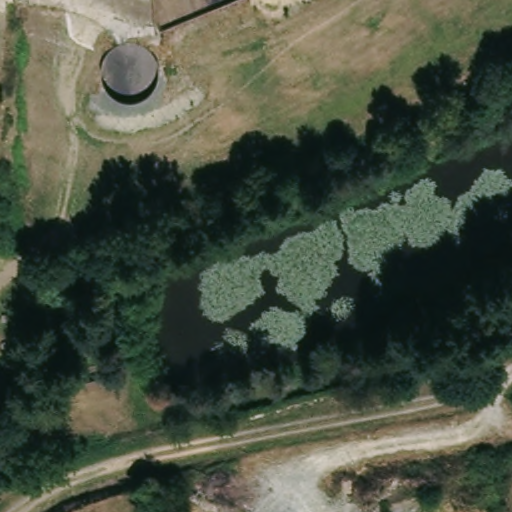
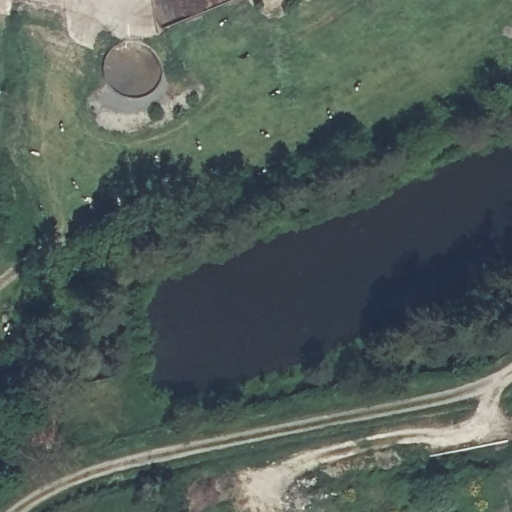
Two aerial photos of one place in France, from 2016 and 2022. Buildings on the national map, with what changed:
unchanged [(40,405),(60,406),(59,441),(39,440),(40,405)]

